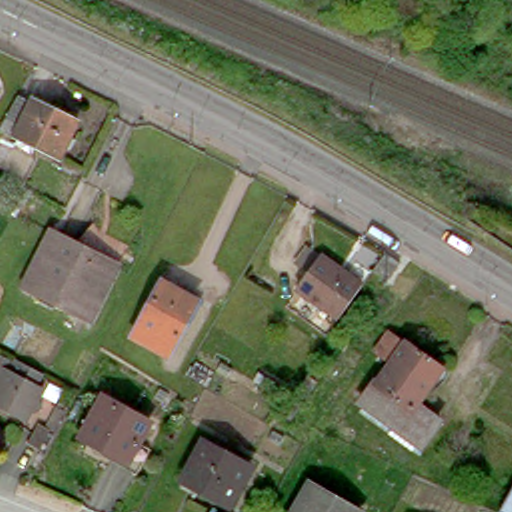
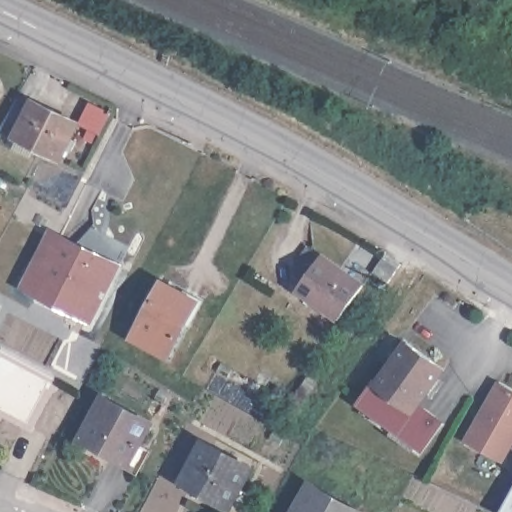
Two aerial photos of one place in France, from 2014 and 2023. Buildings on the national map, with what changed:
unchanged [(74,155),(69,151),(65,159),(6,129),(23,99),(35,106),(38,100),(83,123),(74,140),(80,144),(74,155)]
unchanged [(85,310),(41,288),(28,282),(36,267),(55,229),(123,262),(105,300),(98,316),(85,310)]
unchanged [(400,265),(389,281),(375,271),(386,255),(400,265)]
unchanged [(297,290),(322,256),(364,286),(339,320),(297,290)]
unchanged [(197,303),(169,354),(135,335),(163,284),(197,303)]
unchanged [(439,426),(444,428),(428,451),(422,446),(369,409),(364,416),(349,406),(361,386),(376,396),(397,367),(383,357),(396,339),(449,376),(423,414),(439,426)]
unchanged [(232,368),(228,377),(216,370),(221,363),(232,368)]
unchanged [(50,422),(41,421),(38,427),(0,405),(0,390),(14,364),(52,384),(47,394),(54,398),(48,407),(55,414),(50,422)]
unchanged [(270,379),(266,387),(256,382),(260,374),(270,379)]
unchanged [(316,388),(302,406),(294,399),(306,381),(316,388)]
new [(512,450),(505,463),(464,441),(497,381),(512,389),(512,450)]
unchanged [(155,424),(133,463),(88,438),(110,399),(155,424)]
unchanged [(300,409),(289,424),(281,418),(291,403),(300,409)]
unchanged [(251,469),(231,506),(189,483),(208,447),(251,469)]
unchanged [(512,478),(512,512),(493,512),(512,478)]
unchanged [(366,512),(306,512),(321,487),(366,512)]

